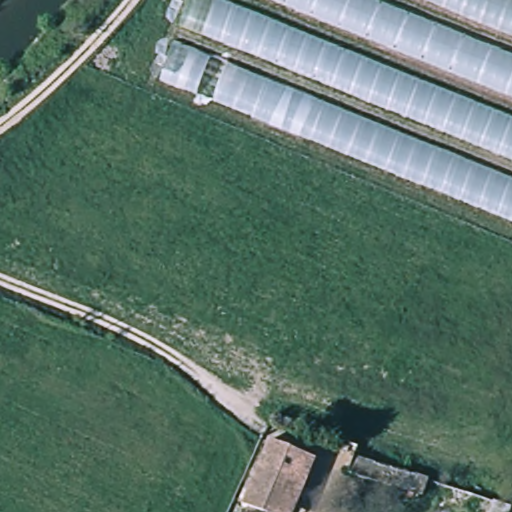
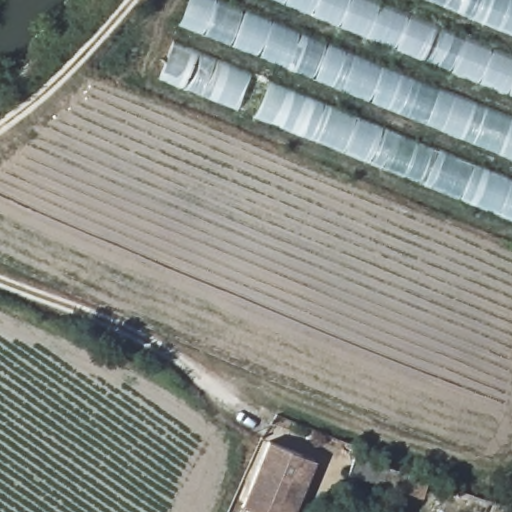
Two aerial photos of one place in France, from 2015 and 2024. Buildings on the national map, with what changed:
unchanged [(188,0),(512,0),(512,219),(157,77),(188,0)]
unchanged [(387,469),(382,487),(310,463),(316,446),(387,469)]
unchanged [(282,480),(271,512),(236,512),(251,470),(282,480)]
unchanged [(395,471),(438,485),(431,507),(390,494),(395,471)]
unchanged [(287,512),(271,512),(282,480),(296,485),(287,512)]
unchanged [(511,512),(493,512),(496,503),(512,509),(511,512)]

